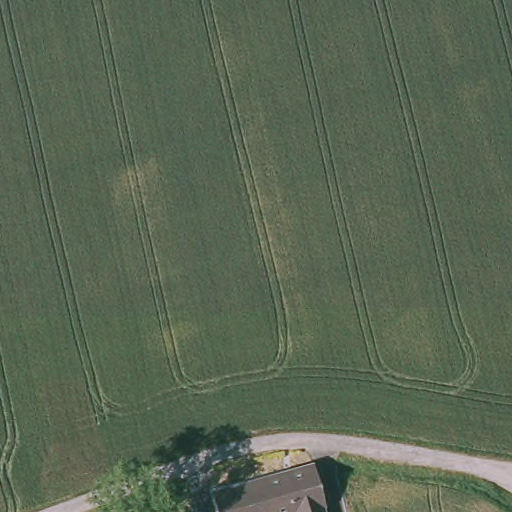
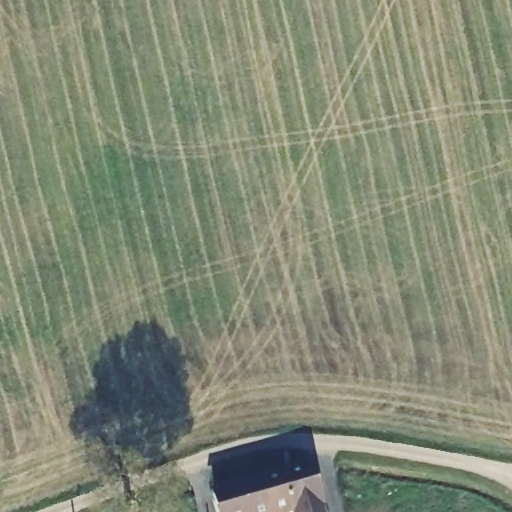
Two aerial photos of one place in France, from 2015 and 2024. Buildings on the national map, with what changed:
unchanged [(268,512),(231,512),(221,485),(285,464),(287,471),(310,463),(326,512),(299,512),(295,503),(268,512)]

